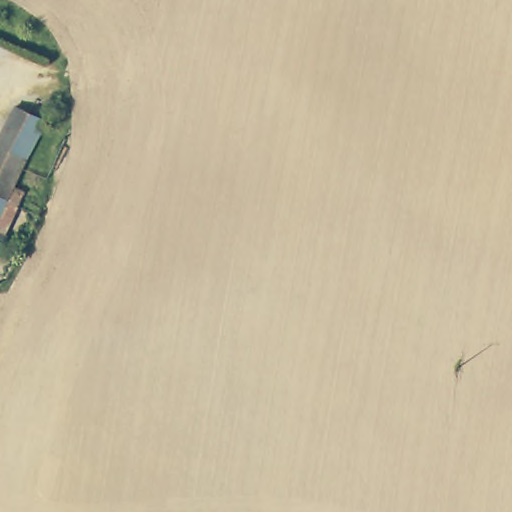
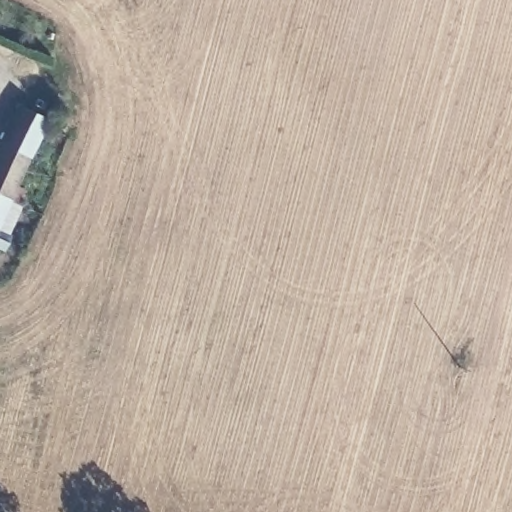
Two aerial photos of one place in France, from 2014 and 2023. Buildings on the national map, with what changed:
unchanged [(8,199),(0,195),(0,136),(15,105),(46,120),(8,199)]
unchanged [(0,217),(0,195),(8,199),(0,217)]
unchanged [(1,249),(0,248),(0,232),(7,235),(1,249)]

